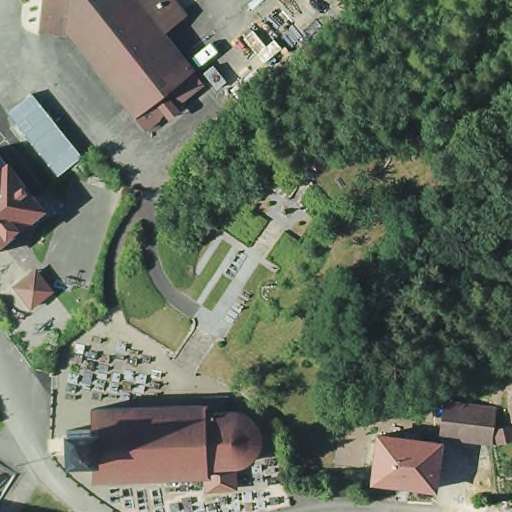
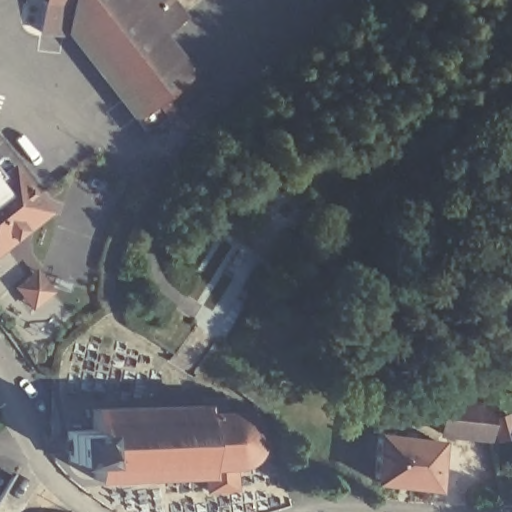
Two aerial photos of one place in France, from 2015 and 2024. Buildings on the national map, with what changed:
unchanged [(163,119),(158,112),(140,126),(80,44),(75,47),(63,32),(63,8),(63,0),(177,0),(188,16),(163,33),(198,83),(180,96),(185,103),(163,119)]
demolished [(8,109),(32,90),(83,153),(59,173),(8,109)]
demolished [(2,114),(0,116),(0,111),(2,114)]
unchanged [(3,165),(5,164),(40,211),(0,243),(0,161),(3,165)]
unchanged [(36,269),(58,295),(33,314),(13,287),(36,269)]
unchanged [(245,409),(255,412),(264,421),(267,436),(262,450),(253,458),(247,461),(242,461),(243,484),(214,485),(213,472),(100,474),(100,455),(74,455),(73,424),(97,424),(97,404),(212,401),(212,394),(235,393),(235,409),(245,409)]
unchanged [(493,444),(458,440),(443,439),(447,408),(462,410),(497,413),(493,444)]
unchanged [(500,434),(512,431),(512,443),(502,445),(500,434)]
unchanged [(383,440),(385,433),(424,438),(423,446),(441,448),(436,493),(375,486),(380,440),(383,440)]
unchanged [(4,464),(26,477),(5,512),(0,512),(0,471),(4,464)]

